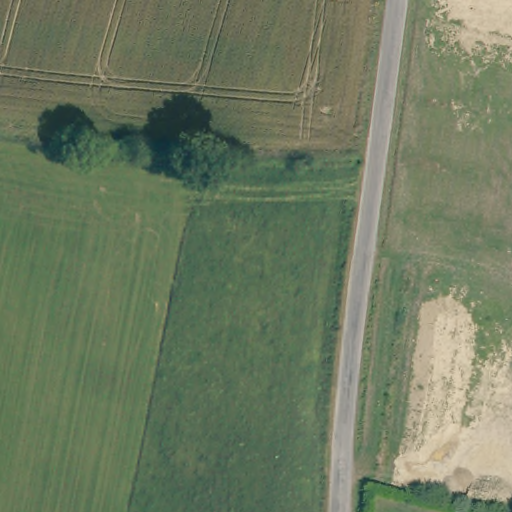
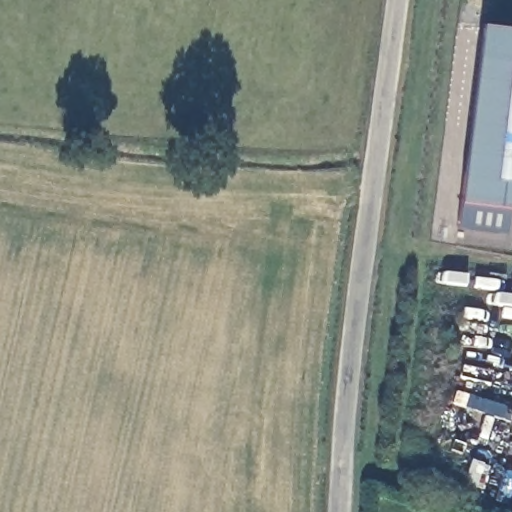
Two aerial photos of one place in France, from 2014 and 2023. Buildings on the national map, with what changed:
new [(483,24),(512,28),(512,209),(461,202),(483,24)]

